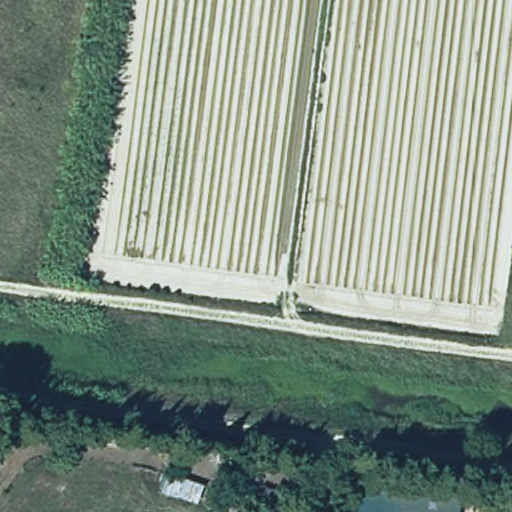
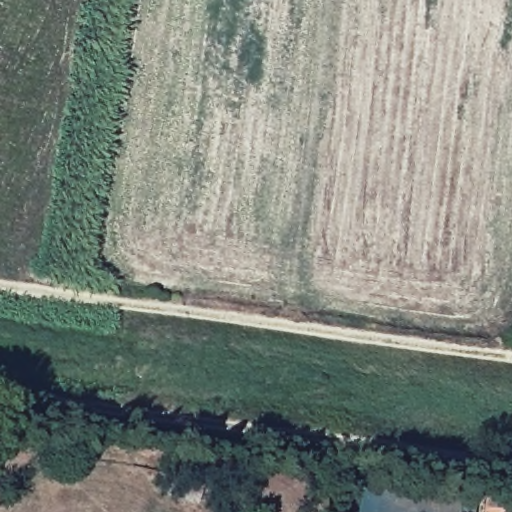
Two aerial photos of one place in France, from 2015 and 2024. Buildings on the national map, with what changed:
unchanged [(360,487),(459,498),(457,512),(357,512),(360,487)]

